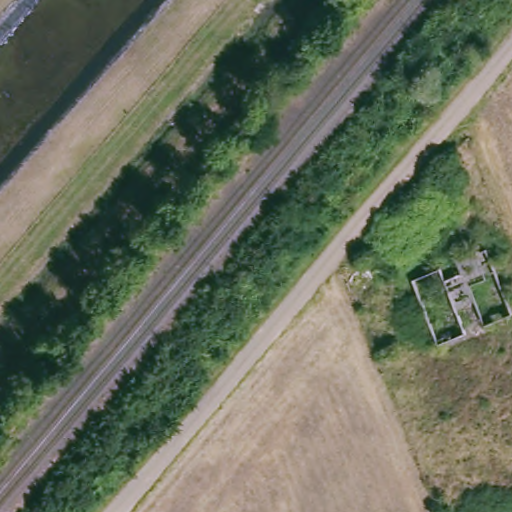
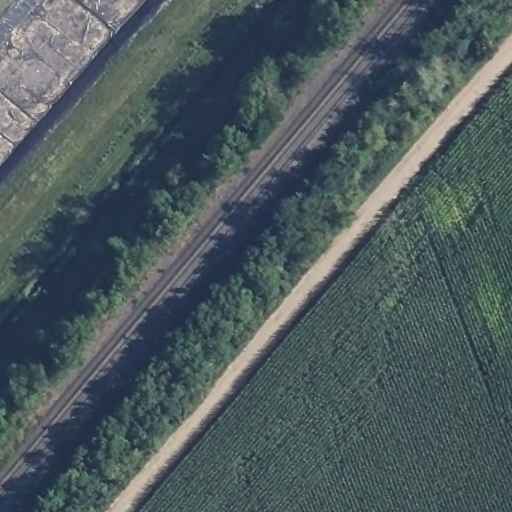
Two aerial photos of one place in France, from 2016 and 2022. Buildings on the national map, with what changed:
[]

